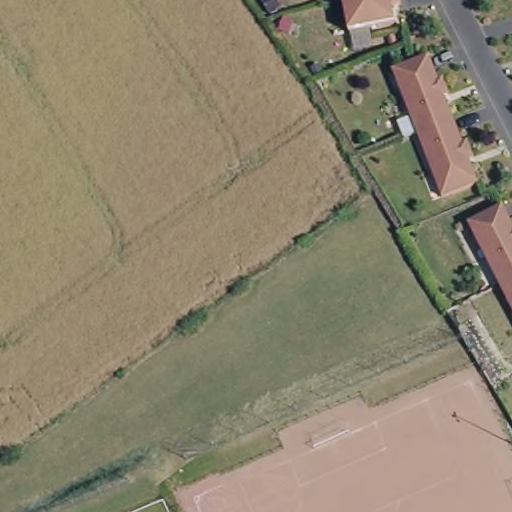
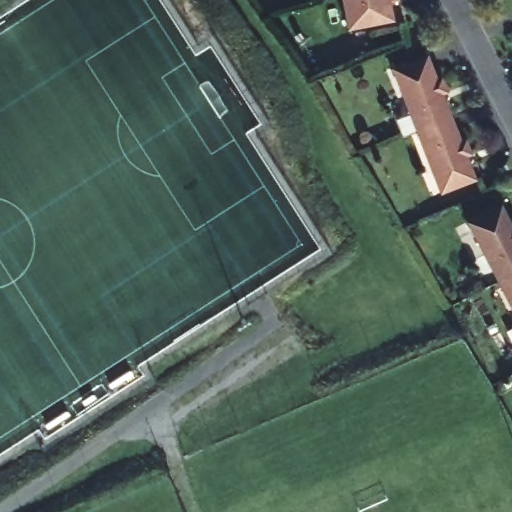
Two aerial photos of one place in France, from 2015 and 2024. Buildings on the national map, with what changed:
unchanged [(390,5),(393,23),(369,27),(347,32),(341,0),(398,0),(399,3),(390,5)]
unchanged [(432,80),(437,78),(442,93),(435,96),(437,101),(440,103),(448,123),(415,135),(410,119),(406,121),(387,69),(403,63),(422,55),(432,80)]
unchanged [(456,143),(460,141),(467,156),(459,159),(461,164),(465,166),(471,182),(439,195),(432,179),(429,180),(412,137),(415,135),(448,123),(456,143)]
unchanged [(490,267),(468,223),(499,207),(502,205),(512,225),(512,276),(502,281),(494,266),(490,267)]
unchanged [(502,281),(512,276),(512,309),(499,282),(502,281)]

